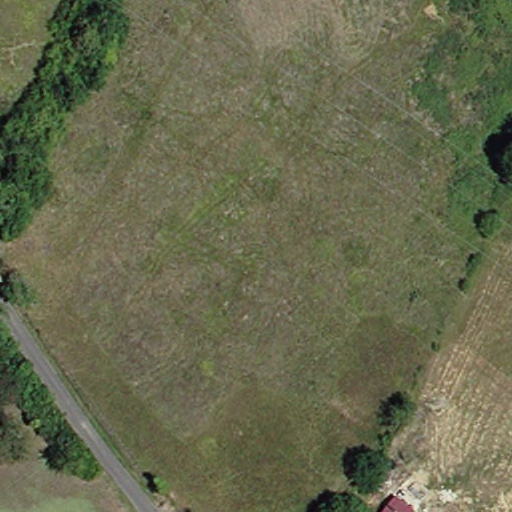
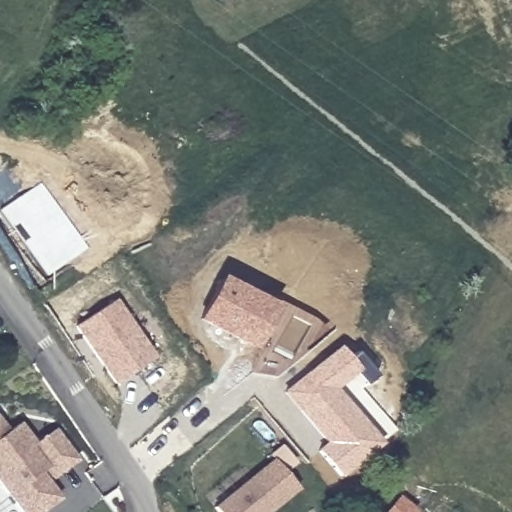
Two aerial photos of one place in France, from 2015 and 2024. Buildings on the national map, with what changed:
new [(45,278),(0,211),(39,184),(85,250),(45,278)]
new [(254,351),(197,322),(220,277),(277,307),(254,351)]
new [(154,358),(113,386),(73,327),(114,300),(154,358)]
new [(361,388),(352,375),(333,389),(379,446),(338,479),(314,451),(321,444),(280,394),(336,347),(346,359),(352,355),(371,378),(361,388)]
new [(15,427),(30,447),(50,433),(72,462),(47,480),(41,471),(35,476),(53,501),(38,512),(14,512),(0,493),(0,430),(4,435),(15,427)]
new [(271,462),(296,492),(271,512),(218,512),(214,508),(271,462)]
new [(415,512),(387,512),(398,499),(415,512)]

